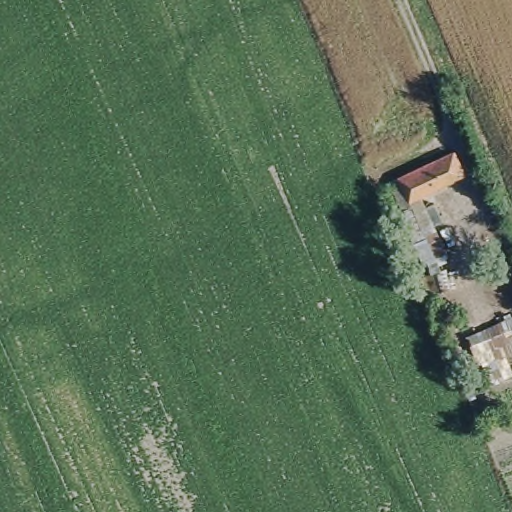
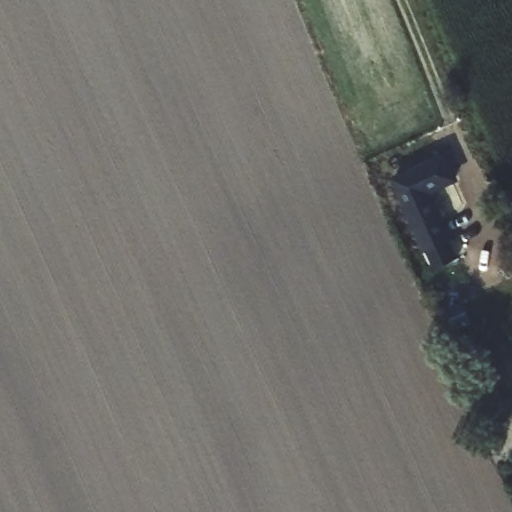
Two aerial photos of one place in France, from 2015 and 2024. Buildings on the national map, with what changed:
unchanged [(474,171),(410,199),(400,176),(462,148),(474,171)]
unchanged [(438,260),(430,246),(424,248),(409,213),(422,207),(445,257),(438,260)]

